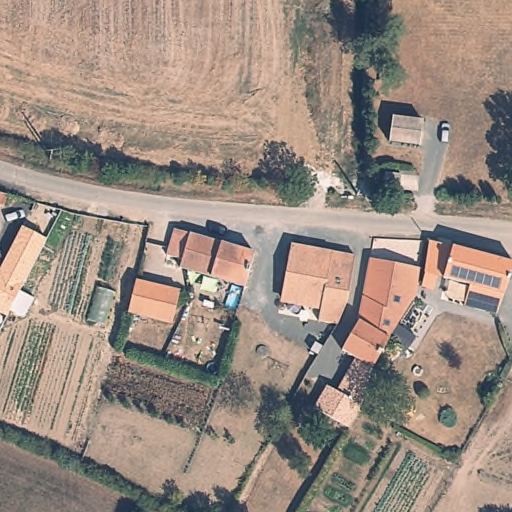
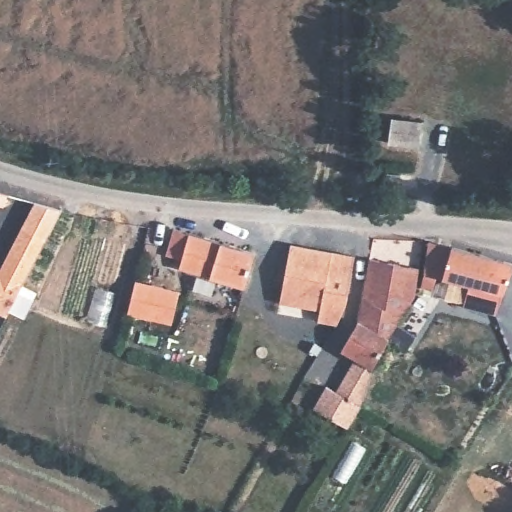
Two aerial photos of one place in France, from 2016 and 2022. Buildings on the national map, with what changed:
unchanged [(419,146),(388,143),(392,118),(422,121),(419,146)]
unchanged [(7,195),(4,207),(0,206),(0,193),(7,195)]
unchanged [(6,318),(0,314),(0,268),(20,227),(46,239),(6,318)]
unchanged [(175,278),(176,270),(161,265),(170,239),(249,264),(240,298),(175,278)]
unchanged [(285,298),(280,296),(293,244),(355,256),(346,302),(337,324),(316,319),(281,312),(285,298)]
unchanged [(423,288),(425,283),(430,252),(512,273),(512,281),(496,324),(463,316),(469,295),(437,287),(435,293),(433,299),(421,296),(423,288)]
unchanged [(406,362),(388,350),(372,378),(341,361),(358,332),(357,332),(370,269),(419,279),(415,307),(397,335),(415,347),(406,362)]
unchanged [(181,292),(175,324),(130,316),(137,282),(181,292)]
unchanged [(340,424),(329,419),(340,399),(350,405),(340,424)]

